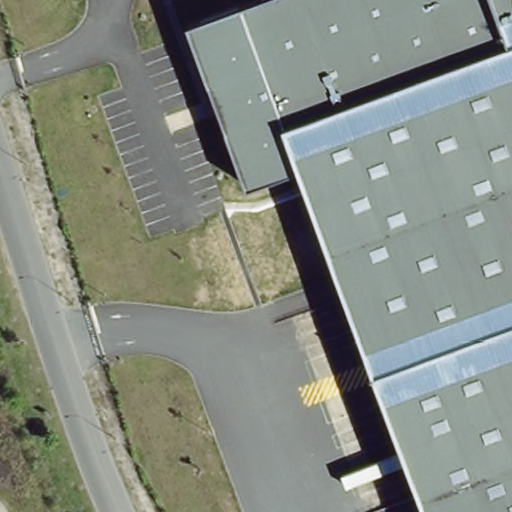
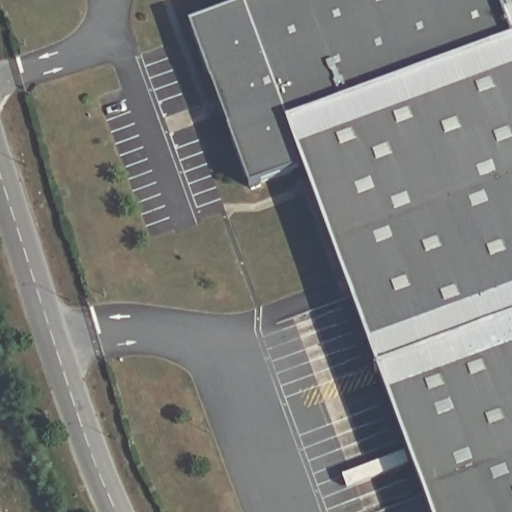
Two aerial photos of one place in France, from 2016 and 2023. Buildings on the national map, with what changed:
unchanged [(254,0),(512,0),(512,512),(430,512),(301,160),(245,181),(187,24),(254,0)]

